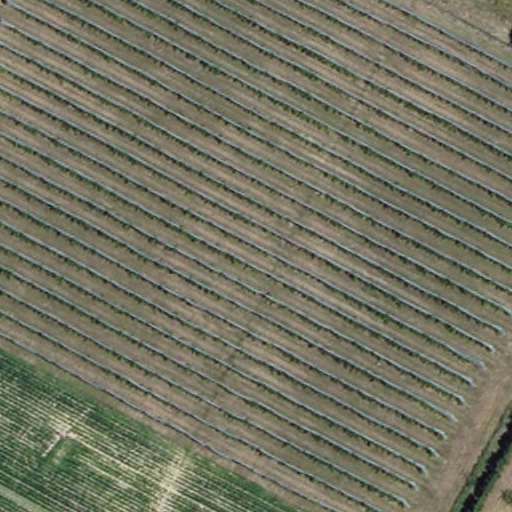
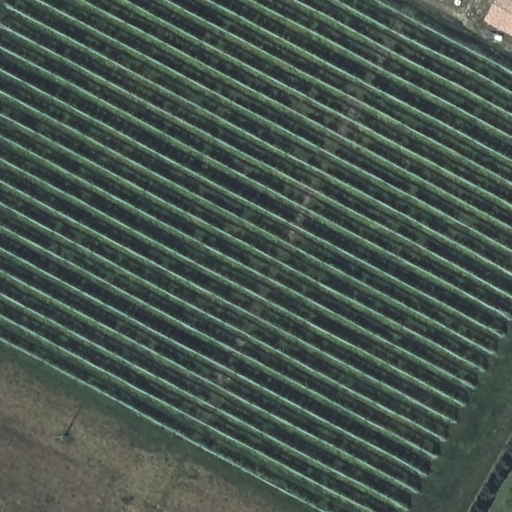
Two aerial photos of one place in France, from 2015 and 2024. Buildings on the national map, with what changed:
new [(485,19),(496,0),(512,0),(512,34),(485,19)]

